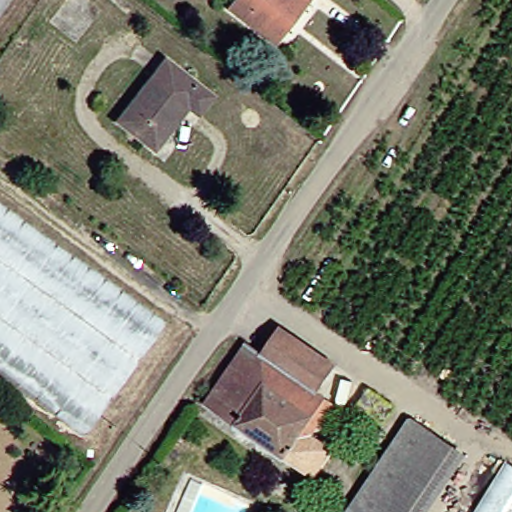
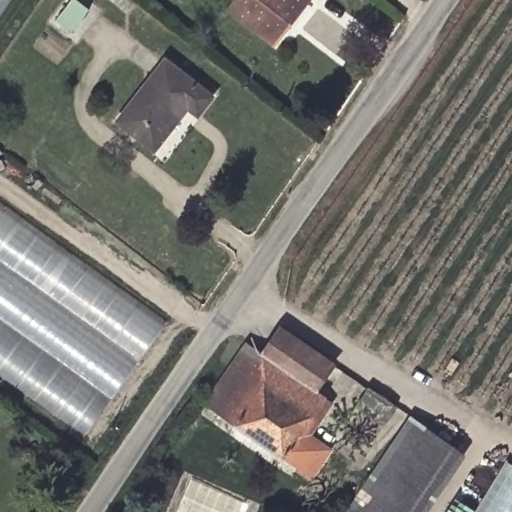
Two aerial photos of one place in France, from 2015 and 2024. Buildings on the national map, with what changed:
unchanged [(0,3),(0,0),(2,0),(0,3)]
unchanged [(220,0),(296,0),(264,37),(219,1),(220,0)]
unchanged [(188,109),(179,102),(144,144),(107,115),(157,54),(203,92),(188,109)]
unchanged [(78,432),(0,378),(0,201),(165,319),(78,432)]
unchanged [(317,454),(303,474),(280,459),(278,461),(196,407),(232,353),(238,345),(254,356),(271,331),(281,338),(324,367),(307,391),(319,400),(299,427),(324,445),(317,454)]
unchanged [(373,423),(350,406),(361,390),(385,407),(373,423)]
unchanged [(452,455),(414,512),(351,512),(409,427),(452,455)]
unchanged [(512,467),(512,512),(468,512),(501,459),(512,467)]

